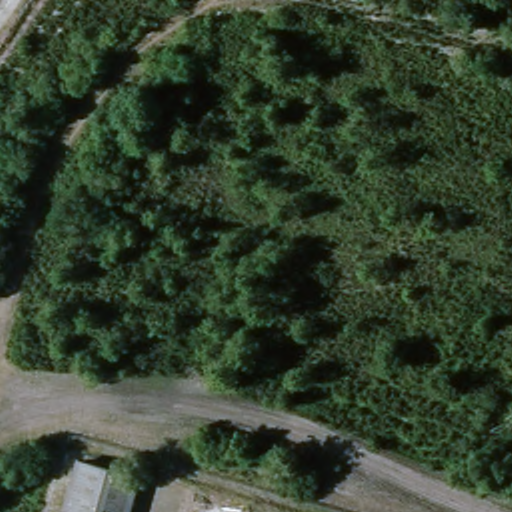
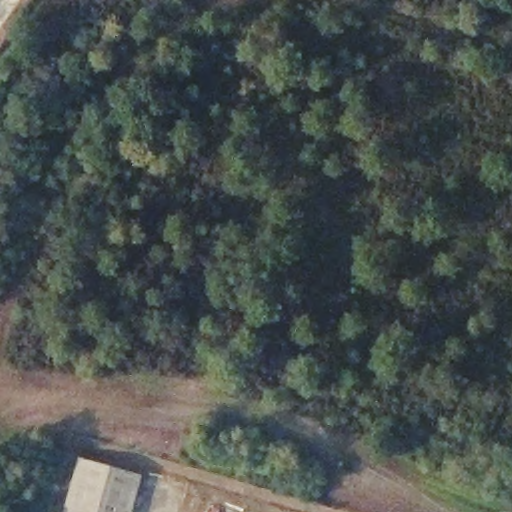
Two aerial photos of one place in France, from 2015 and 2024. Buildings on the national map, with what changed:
unchanged [(80,455),(146,470),(126,512),(69,512),(80,455)]

